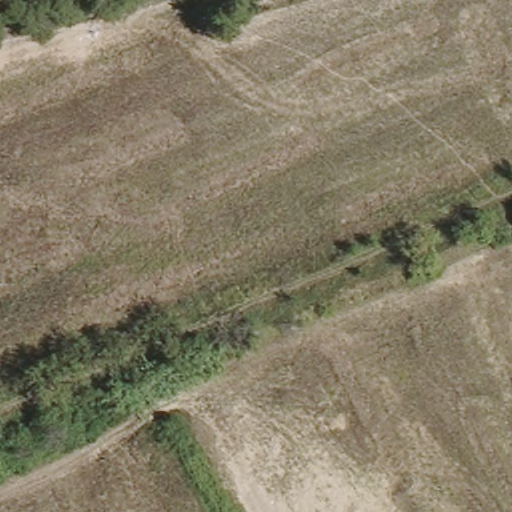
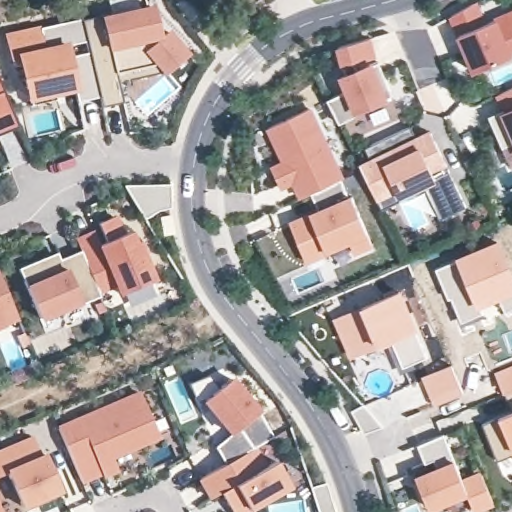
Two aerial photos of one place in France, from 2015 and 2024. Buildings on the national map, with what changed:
new [(508,53),(510,58),(475,73),(450,16),(472,4),(484,25),(512,13),(512,51),(508,53)]
new [(106,110),(87,23),(108,18),(108,21),(158,10),(164,39),(161,40),(162,45),(173,35),(192,57),(169,76),(161,67),(121,76),(128,105),(106,110)]
new [(40,24),(41,27),(86,17),(87,23),(103,94),(77,100),(75,91),(28,102),(17,58),(10,61),(5,33),(40,24)]
new [(347,90),(343,76),(346,75),(339,46),(370,38),(375,55),(355,60),(358,70),(379,62),(393,96),(357,111),(359,115),(339,123),(326,97),(347,90)]
new [(121,76),(161,67),(168,75),(123,85),(121,76)]
new [(1,133),(0,131),(0,83),(18,125),(1,133)]
new [(512,88),(512,143),(502,147),(490,119),(506,112),(498,94),(512,88)]
new [(304,196),(296,179),(281,185),(274,168),(287,161),(271,126),(311,107),(344,177),(341,179),(311,195),(304,196)]
new [(391,135),(401,157),(410,153),(406,145),(430,133),(467,209),(443,221),(426,186),(398,199),(395,192),(378,200),(361,167),(371,162),(365,148),(391,135)]
new [(373,246),(354,254),(350,244),(305,263),(288,219),(316,207),(311,195),(341,179),(373,246)]
new [(130,196),(124,185),(125,185),(149,184),(170,184),(171,208),(158,210),(146,218),(145,219),(130,196)]
new [(75,237),(118,215),(128,232),(133,231),(138,243),(141,241),(156,280),(118,295),(116,289),(100,296),(81,252),(75,237)]
new [(175,237),(163,237),(163,221),(175,221),(175,237)]
new [(504,315),(502,309),(497,300),(478,307),(455,257),(500,239),(512,265),(512,312),(504,315)]
new [(100,296),(41,320),(20,268),(58,253),(61,260),(81,252),(100,296)]
new [(455,257),(478,307),(481,315),(459,323),(434,268),(455,257)]
new [(0,325),(0,280),(17,318),(0,325)]
new [(401,368),(390,344),(350,361),(332,318),(403,289),(408,300),(416,297),(425,321),(418,323),(430,356),(401,368)]
new [(109,314),(101,316),(98,308),(105,305),(109,314)]
new [(505,393),(494,371),(512,363),(512,390),(505,393)]
new [(453,364),(464,394),(434,406),(421,377),(453,364)]
new [(208,374),(219,388),(231,378),(260,412),(274,436),(253,448),(225,464),(217,446),(235,433),(205,399),(198,402),(190,382),(208,374)]
new [(498,459),(483,422),(512,410),(505,393),(512,390),(512,453),(498,459)]
new [(104,479),(103,476),(83,485),(60,432),(141,396),(160,439),(113,459),(116,469),(118,473),(104,479)]
new [(364,403),(384,426),(365,434),(352,410),(363,404),(364,403)]
new [(45,452),(61,491),(22,508),(7,472),(0,475),(0,447),(32,433),(41,453),(45,452)]
new [(464,481),(482,474),(492,503),(476,510),(468,492),(426,507),(416,477),(440,469),(437,461),(426,462),(419,444),(444,433),(464,481)]
new [(253,448),(265,467),(276,461),(290,485),(242,512),(232,512),(221,492),(211,497),(200,478),(225,464),(253,448)]
new [(335,512),(319,512),(311,487),(312,486),(326,481),(335,512)]
new [(0,512),(0,506),(3,512),(0,512)]

